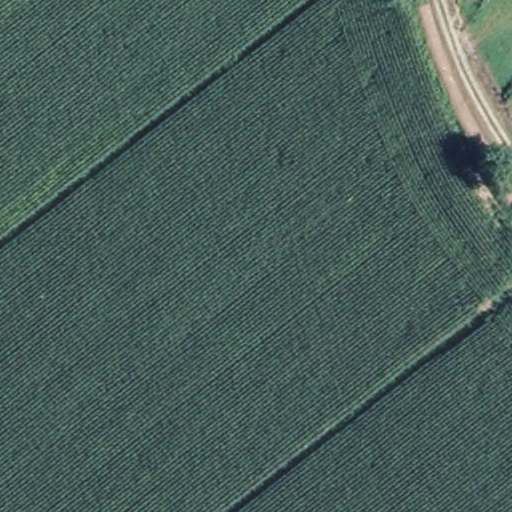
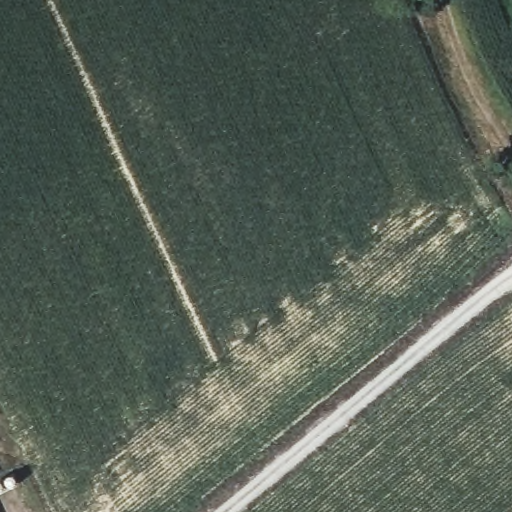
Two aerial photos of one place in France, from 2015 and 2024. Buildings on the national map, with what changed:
[]

